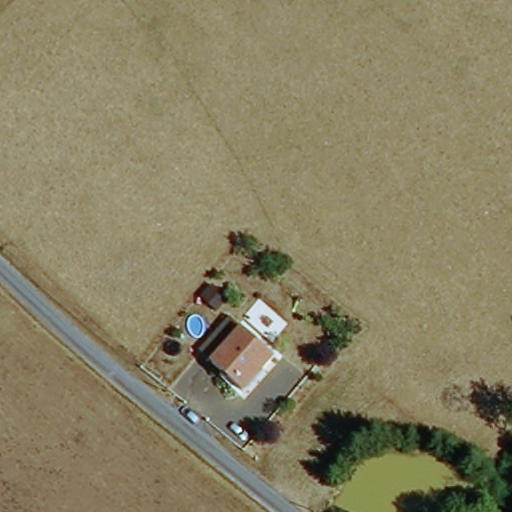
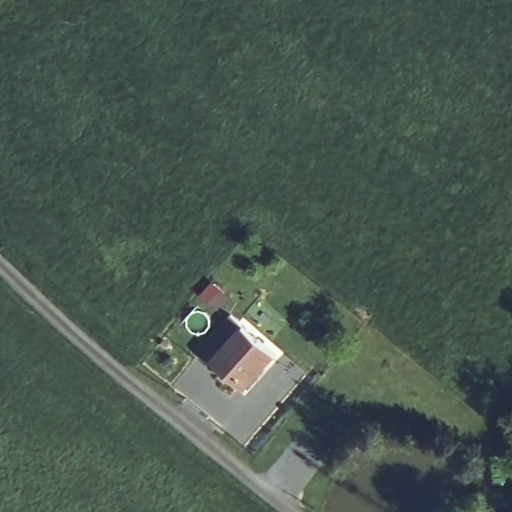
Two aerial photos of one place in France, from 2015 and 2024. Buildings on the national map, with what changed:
unchanged [(209,289),(224,300),(214,313),(200,302),(209,289)]
unchanged [(275,355),(246,392),(213,367),(214,366),(201,354),(229,319),(275,355)]

